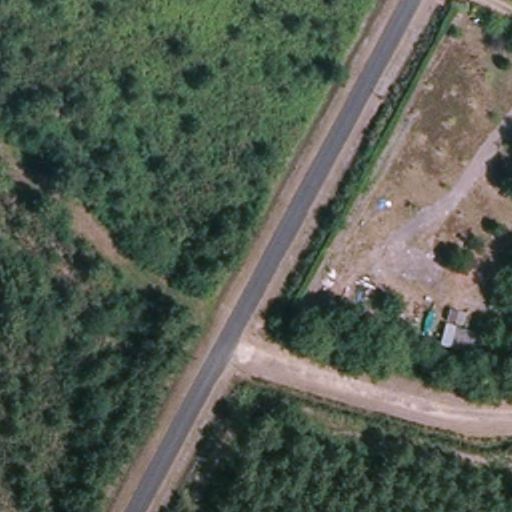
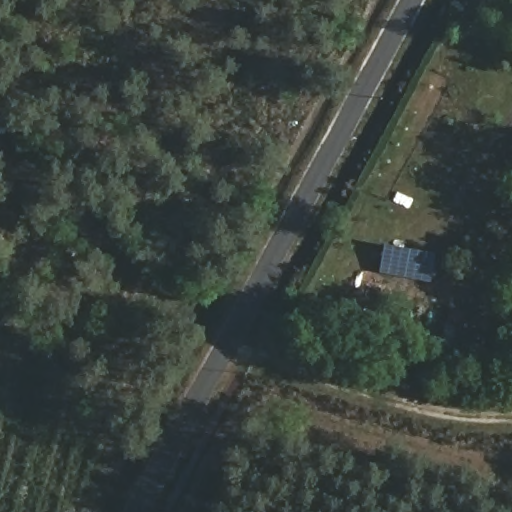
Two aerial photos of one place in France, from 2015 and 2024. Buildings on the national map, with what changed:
new [(435,254),(430,282),(383,273),(388,245),(435,254)]

